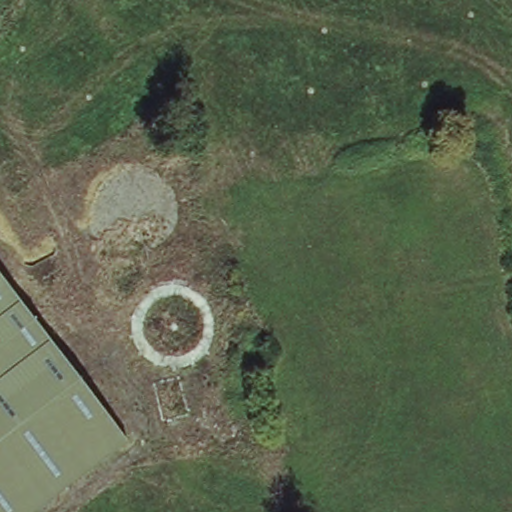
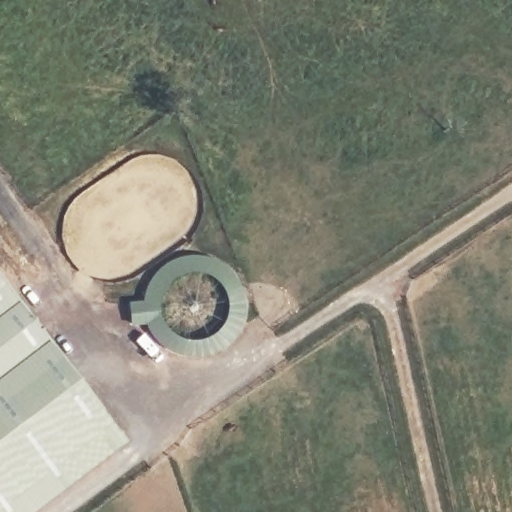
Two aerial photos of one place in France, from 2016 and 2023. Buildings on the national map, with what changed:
new [(247,312),(244,322),(239,331),(233,339),(224,346),(215,350),(206,353),(196,354),(186,353),(177,350),(168,346),(159,339),(153,331),(147,320),(131,320),(130,298),(145,298),(149,283),(153,274),(159,266),(168,260),(177,255),(186,252),(196,251),(206,252),(215,255),(224,260),(233,266),(239,274),(244,283),(247,292),(248,302),(247,312)]
unchanged [(34,512),(0,512),(0,274),(129,440),(34,512)]

